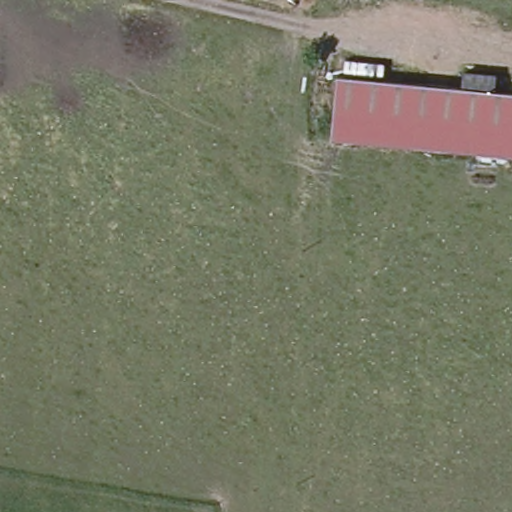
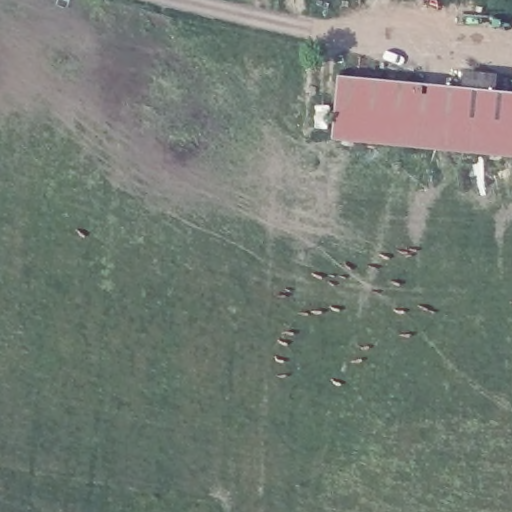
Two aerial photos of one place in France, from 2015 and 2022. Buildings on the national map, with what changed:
unchanged [(512,92),(512,156),(328,140),(336,77),(512,92)]

